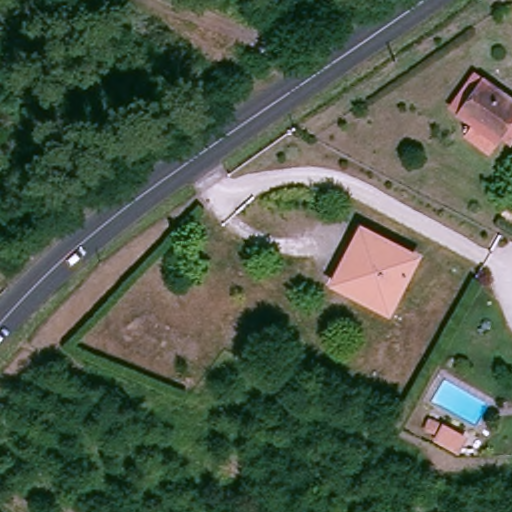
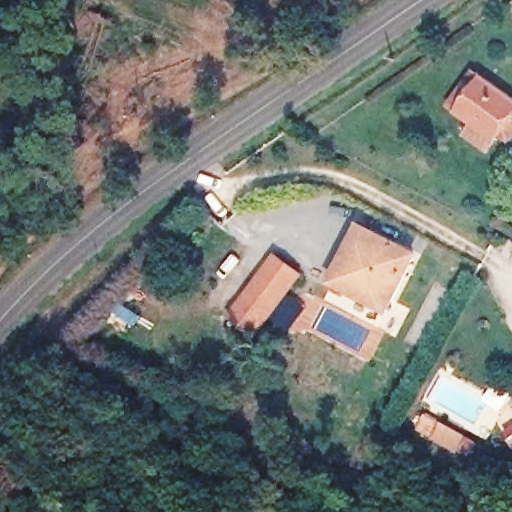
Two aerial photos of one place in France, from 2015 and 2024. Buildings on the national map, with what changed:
unchanged [(512,101),(512,141),(502,134),(499,138),(461,110),(483,80),(512,101)]
unchanged [(374,172),(383,177),(379,186),(370,181),(374,172)]
unchanged [(385,304),(335,278),(346,256),(353,259),(366,232),(409,253),(385,304)]
new [(304,274),(264,326),(235,305),(275,254),(304,274)]

